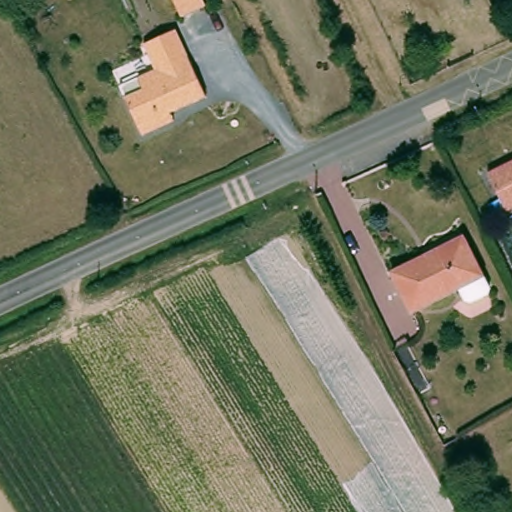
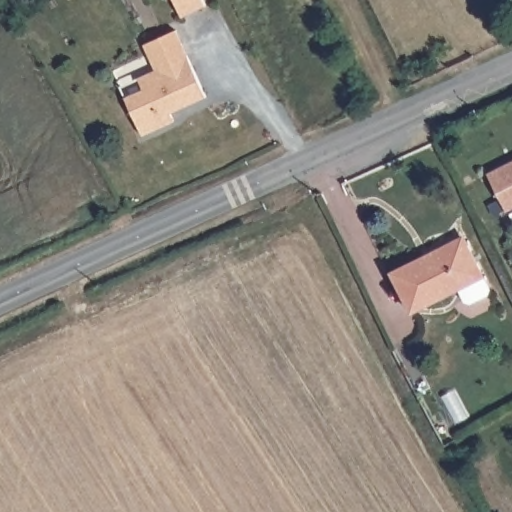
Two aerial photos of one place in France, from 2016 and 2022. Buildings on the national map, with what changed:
unchanged [(212,2),(187,14),(180,0),(211,0),(212,2)]
unchanged [(128,101),(126,95),(144,87),(139,75),(156,67),(145,41),(177,27),(196,70),(207,94),(163,113),(166,122),(143,132),(128,101)]
unchanged [(512,166),(512,213),(492,177),(512,166)]
unchanged [(485,273),(491,286),(489,291),(472,300),(467,298),(460,286),(410,310),(392,272),(464,234),(485,273)]

